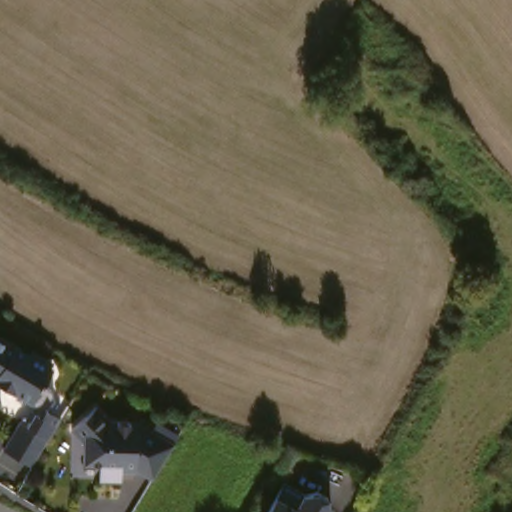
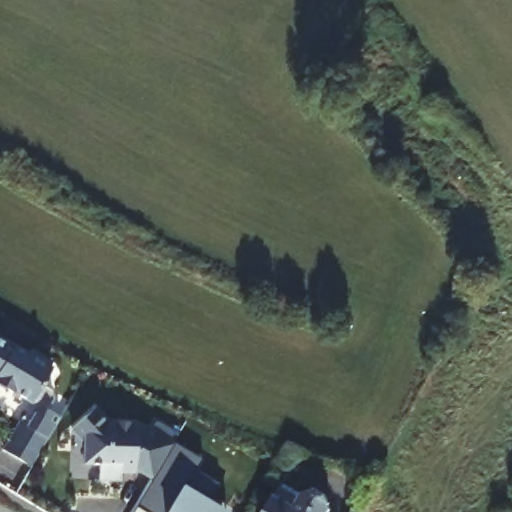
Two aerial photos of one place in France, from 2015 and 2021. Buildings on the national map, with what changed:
unchanged [(37,471),(10,454),(27,425),(34,429),(41,416),(39,407),(14,392),(16,388),(8,383),(3,384),(0,383),(0,342),(3,338),(35,358),(43,357),(54,363),(56,371),(59,373),(50,389),(58,394),(61,403),(55,414),(67,421),(63,429),(38,471),(37,471)]
unchanged [(119,418),(146,421),(181,443),(182,443),(161,476),(161,477),(145,468),(130,466),(129,477),(108,474),(110,459),(95,457),(97,440),(83,425),(106,403),(119,418)]
new [(202,457),(194,469),(218,483),(201,507),(210,512),(173,512),(168,509),(171,504),(149,491),(161,477),(182,443),(202,457)]
unchanged [(298,485),(342,512),(282,512),(298,485)]

